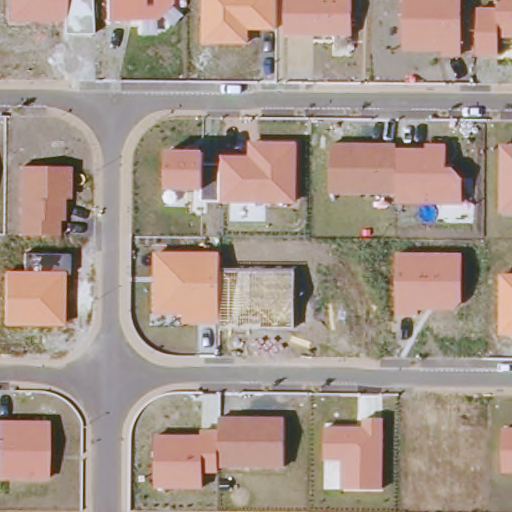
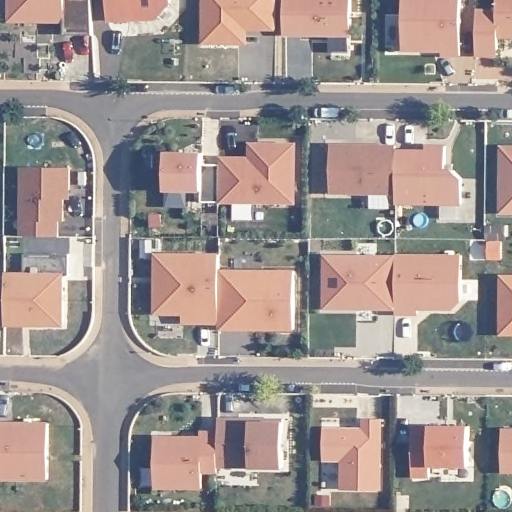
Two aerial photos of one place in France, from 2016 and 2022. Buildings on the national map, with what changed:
unchanged [(63,33),(63,22),(8,21),(8,0),(93,0),(93,34),(63,33)]
unchanged [(171,6),(181,15),(171,25),(160,16),(156,20),(157,35),(140,36),(138,21),(108,21),(107,0),(173,0),(173,4),(171,6)]
unchanged [(249,30),(250,45),(203,44),(203,0),(276,0),(276,31),(249,30)]
unchanged [(336,50),(335,35),(285,35),(286,0),(352,0),(353,50),(336,50)]
unchanged [(441,58),(440,49),(402,49),(402,0),(461,0),(461,58),(441,58)]
unchanged [(499,0),(512,0),(512,36),(501,36),(500,56),(476,56),(476,9),(500,9),(499,0)]
unchanged [(205,151),(205,164),(221,165),(221,155),(248,156),(248,141),(297,141),(295,202),(203,199),(204,192),(167,192),(167,149),(205,151)]
unchanged [(396,144),(396,148),(425,149),(425,144),(446,144),(447,167),(455,168),(463,179),(462,204),(395,203),(395,194),(331,194),(332,144),(396,144)]
unchanged [(512,213),(501,213),(501,145),(512,146),(512,213)]
unchanged [(71,168),(70,199),(65,199),(65,221),(58,221),(59,235),(21,234),(21,167),(71,168)]
new [(323,307),(325,253),(397,252),(396,308),(323,307)]
unchanged [(461,253),(461,304),(456,310),(419,311),(420,316),(396,315),(397,252),(461,253)]
unchanged [(25,272),(26,253),(70,254),(68,276),(65,276),(64,325),(4,324),(5,272),(25,272)]
unchanged [(219,253),(219,269),(219,274),(218,322),(218,324),(182,324),(182,314),(156,314),(155,253),(219,253)]
unchanged [(295,270),(295,328),(261,329),(262,323),(218,322),(219,274),(219,269),(295,270)]
unchanged [(512,337),(501,337),(503,275),(512,275),(512,337)]
unchanged [(201,435),(201,429),(219,429),(218,418),(284,418),(283,470),(218,469),(218,474),(203,474),(202,489),(156,489),(156,436),(201,435)]
unchanged [(363,426),(363,419),(382,419),(383,489),(341,488),(340,459),(323,458),(324,427),(363,426)]
unchanged [(48,422),(48,483),(0,480),(0,421),(48,422)]
new [(430,466),(430,477),(413,477),(412,424),(430,424),(469,425),(469,466),(430,466)]
unchanged [(512,471),(501,471),(502,428),(512,427),(512,471)]

